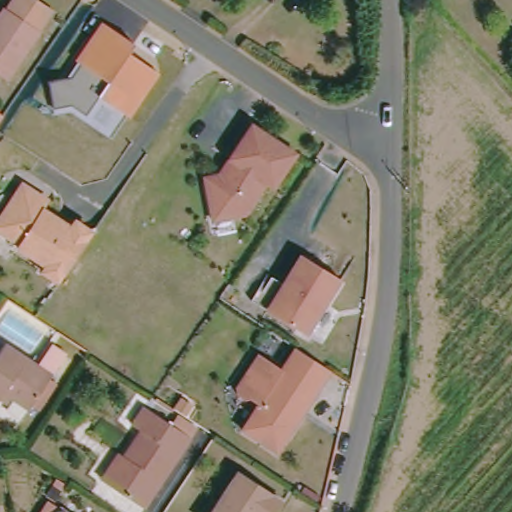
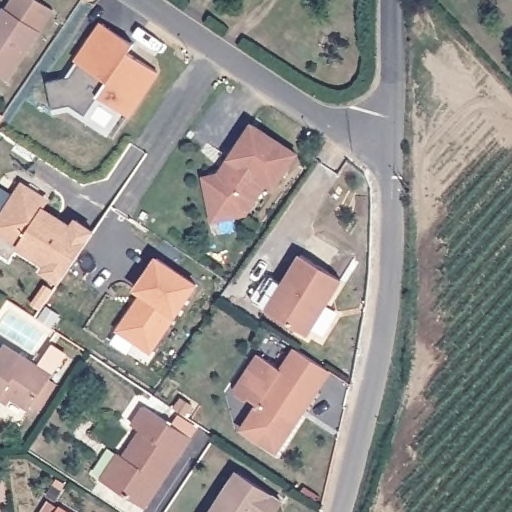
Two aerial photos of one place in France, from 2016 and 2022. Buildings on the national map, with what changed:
unchanged [(0,16),(4,11),(7,11),(15,0),(40,0),(56,11),(8,82),(0,77),(0,16)]
unchanged [(138,45),(133,55),(161,74),(133,119),(105,100),(91,123),(73,110),(58,114),(53,84),(71,79),(103,24),(138,45)]
unchanged [(0,136),(0,111),(12,119),(3,133),(0,136)]
unchanged [(214,218),(208,188),(214,178),(228,175),(235,164),(231,161),(254,127),(299,156),(276,190),(269,186),(248,217),(236,219),(215,224),(214,218)]
unchanged [(19,245),(21,242),(3,229),(1,219),(26,182),(41,193),(42,197),(50,202),(46,208),(74,227),(48,264),(19,245)]
new [(48,264),(74,227),(71,224),(76,219),(93,231),(58,283),(41,272),(48,264)]
new [(140,294),(134,289),(158,256),(199,284),(178,316),(152,354),(118,330),(140,294)]
unchanged [(266,292),(269,294),(279,279),(291,286),(308,257),(349,282),(315,338),(281,317),(259,303),(266,292)]
unchanged [(241,386),(262,353),(285,367),(299,346),(325,363),(331,366),(303,410),(306,412),(282,450),(247,428),(263,403),(254,397),(248,398),(243,394),(241,386)]
unchanged [(36,412),(10,394),(4,403),(0,401),(0,364),(10,348),(45,369),(58,349),(70,356),(58,378),(55,381),(64,387),(43,416),(36,412)]
unchanged [(176,423),(181,415),(200,428),(194,436),(149,502),(112,477),(149,424),(138,418),(149,405),(176,423)]
unchanged [(288,504),(283,512),(219,512),(243,475),(288,504)]
unchanged [(51,507),(56,512),(47,512),(51,507)]
unchanged [(62,509),(66,512),(59,512),(62,509)]

